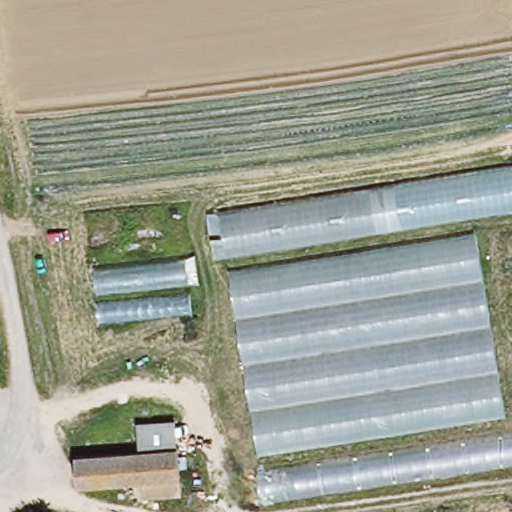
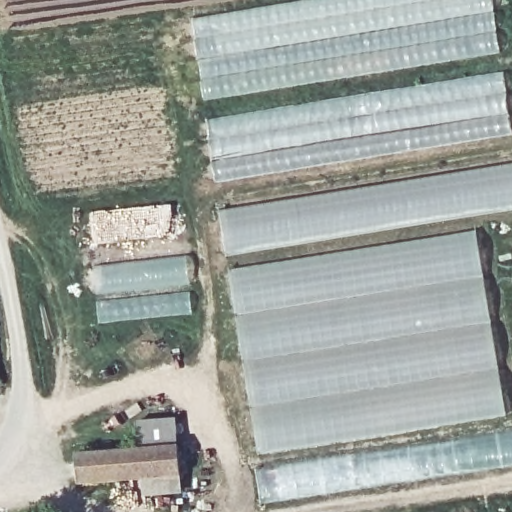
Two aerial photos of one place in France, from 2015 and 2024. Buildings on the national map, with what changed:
new [(304,0),(493,0),(501,53),(204,101),(192,18),(304,0)]
new [(504,71),(512,127),(512,135),(216,182),(208,118),(504,71)]
unchanged [(512,168),(512,209),(233,253),(223,211),(512,168)]
unchanged [(476,230),(507,415),(257,451),(230,271),(476,230)]
unchanged [(185,258),(189,285),(95,295),(92,268),(185,258)]
unchanged [(96,302),(189,291),(191,313),(98,326),(96,302)]
unchanged [(136,449),(136,418),(175,415),(177,446),(136,449)]
demolished [(257,465),(512,430),(512,467),(262,502),(257,465)]
unchanged [(143,496),(142,478),(75,483),(74,453),(136,449),(177,446),(179,474),(181,492),(143,496)]

